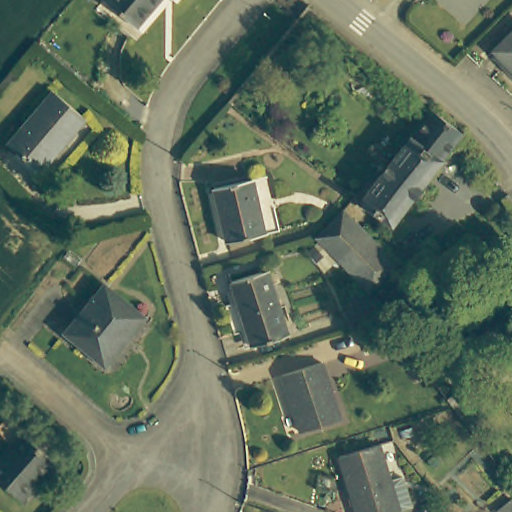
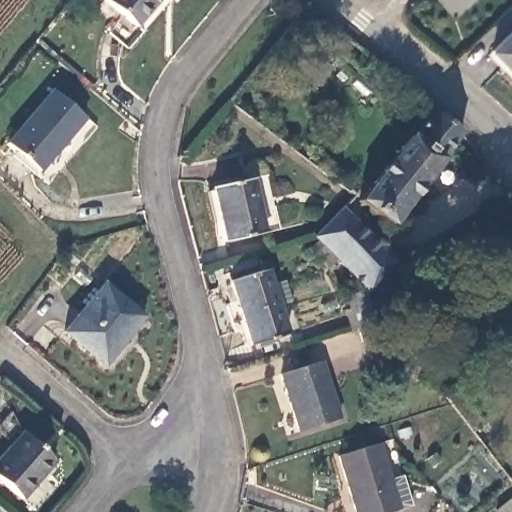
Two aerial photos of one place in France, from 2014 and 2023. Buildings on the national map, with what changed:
unchanged [(109,0),(179,0),(147,34),(109,0)]
unchanged [(179,0),(188,0),(184,5),(179,0)]
unchanged [(496,48),(512,33),(512,65),(496,48)]
unchanged [(85,116),(39,167),(7,140),(55,88),(85,116)]
unchanged [(313,235),(319,229),(335,212),(350,195),(356,201),(357,199),(400,144),(405,137),(408,139),(429,110),(446,123),(458,133),(420,182),(425,187),(411,204),(406,201),(386,225),(373,214),(359,231),(392,264),(363,292),(359,287),(310,238),(313,235)]
unchanged [(260,176),(270,231),(217,242),(205,188),(260,176)]
unchanged [(262,270),(285,333),(250,346),(227,283),(262,270)]
unchanged [(512,271),(512,290),(490,306),(468,321),(459,308),(512,271)]
unchanged [(142,317),(104,364),(64,332),(102,285),(142,317)]
unchanged [(373,350),(367,330),(358,333),(352,310),(375,303),(392,323),(405,340),(373,350)]
unchanged [(320,356),(336,415),(294,427),(278,370),(320,356)]
unchanged [(471,395),(460,403),(442,379),(453,372),(471,395)]
unchanged [(463,415),(476,406),(496,434),(483,442),(463,415)]
unchanged [(19,500),(0,483),(0,456),(21,433),(52,461),(19,500)]
unchanged [(406,501),(393,505),(372,512),(351,512),(333,451),(373,439),(385,476),(397,472),(406,501)]

